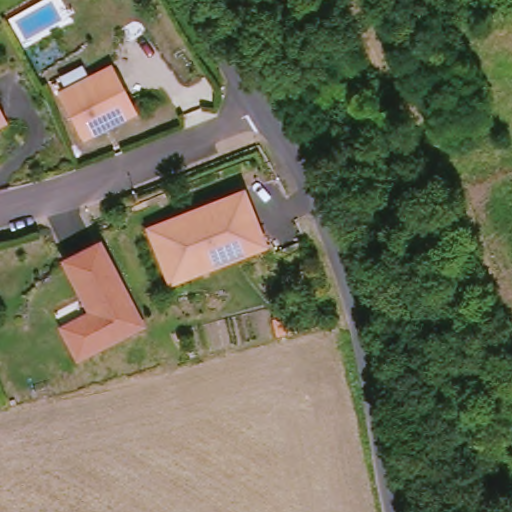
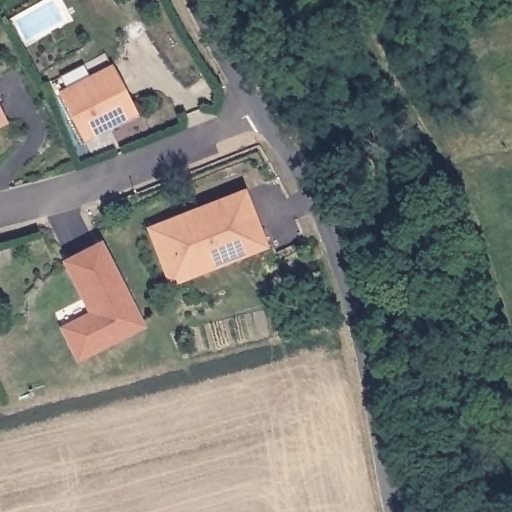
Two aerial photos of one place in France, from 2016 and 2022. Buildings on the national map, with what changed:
unchanged [(140,122),(87,149),(65,102),(59,91),(90,76),(95,87),(118,75),(140,122)]
unchanged [(10,127),(0,132),(0,108),(10,127)]
unchanged [(210,277),(177,291),(154,235),(247,196),(250,202),(164,237),(175,264),(187,269),(204,261),(207,271),(210,277)]
unchanged [(269,246),(207,271),(204,261),(187,269),(175,264),(164,237),(250,202),(269,246)]
unchanged [(85,364),(74,342),(77,331),(98,320),(75,275),(78,264),(105,250),(132,301),(135,307),(149,331),(85,364)]
unchanged [(278,337),(275,322),(294,317),(297,332),(278,337)]

